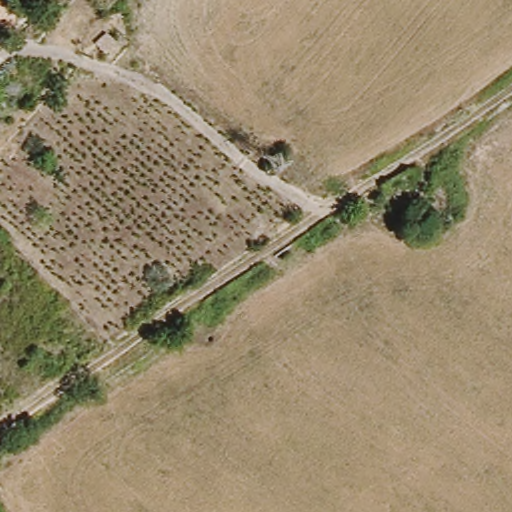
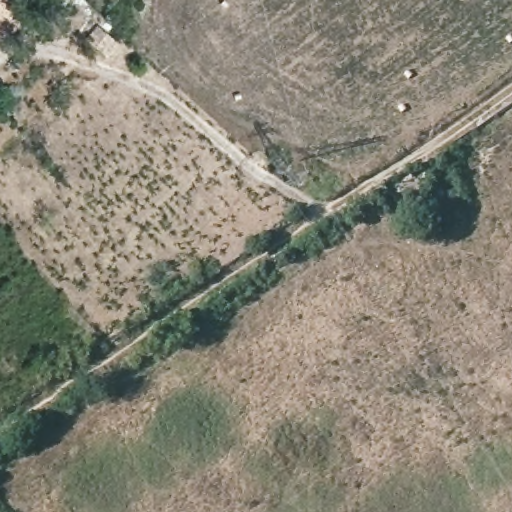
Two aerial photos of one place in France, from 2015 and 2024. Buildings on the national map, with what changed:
unchanged [(16,33),(0,21),(0,0),(25,0),(34,7),(16,33)]
unchanged [(116,43),(107,54),(98,45),(96,44),(106,33),(116,43)]

